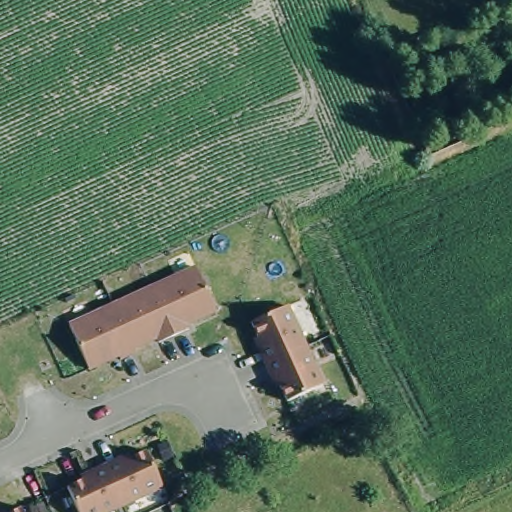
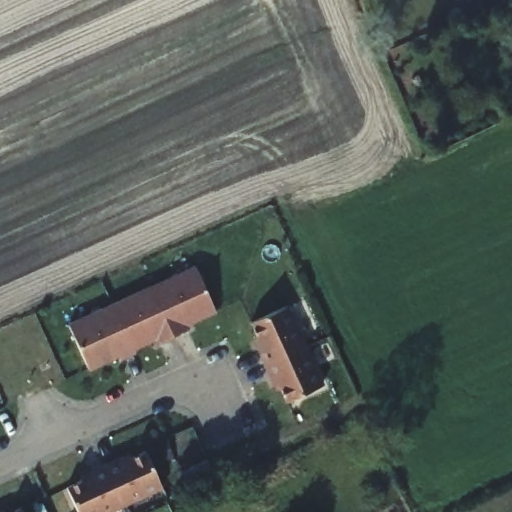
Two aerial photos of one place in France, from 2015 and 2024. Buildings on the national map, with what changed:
unchanged [(196,265),(216,308),(190,322),(189,329),(174,335),(153,286),(196,265)]
unchanged [(174,335),(162,342),(159,336),(134,348),(115,303),(153,286),(174,335)]
unchanged [(134,348),(136,352),(121,360),(119,355),(90,367),(70,325),(115,303),(134,348)]
unchanged [(263,367),(256,353),(261,351),(253,336),(248,325),(284,307),(289,320),(302,348),(263,367)]
unchanged [(320,386),(283,404),(273,378),(269,380),(263,367),(302,348),(320,386)]
unchanged [(101,465),(113,459),(116,462),(143,450),(159,487),(121,505),(101,465)]
unchanged [(105,512),(76,512),(62,485),(89,473),(88,470),(101,465),(121,505),(105,512)]
unchanged [(18,511),(19,512),(17,512),(18,511)]

